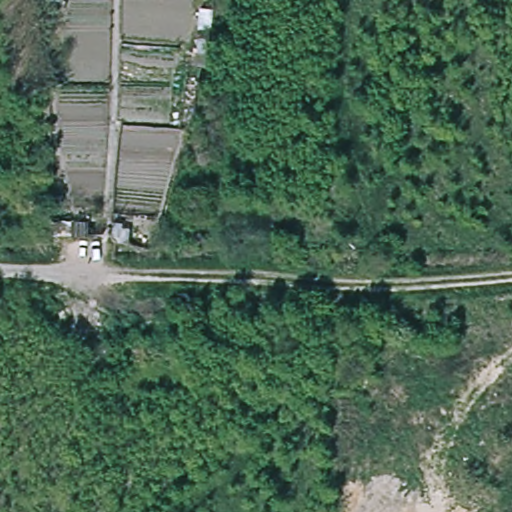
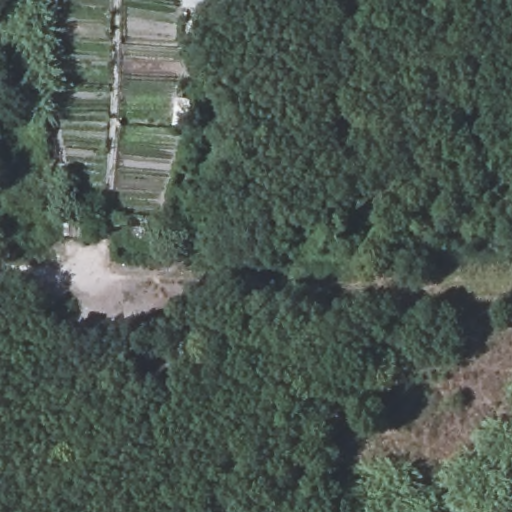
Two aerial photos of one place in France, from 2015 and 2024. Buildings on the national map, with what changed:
unchanged [(201,69),(187,67),(196,23),(208,25),(201,69)]
unchanged [(72,237),(72,218),(87,218),(87,237),(72,237)]
unchanged [(150,242),(141,243),(141,248),(128,250),(127,233),(150,232),(150,242)]

